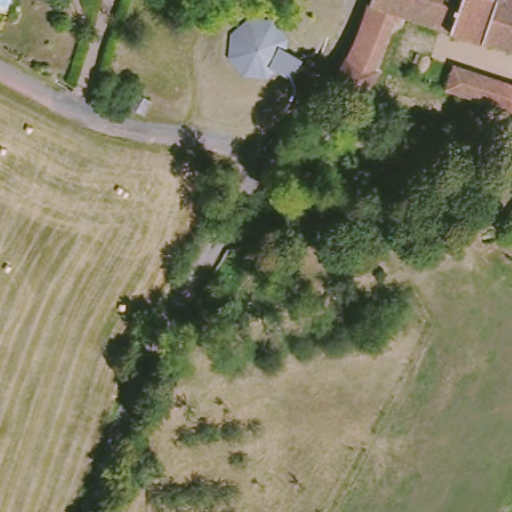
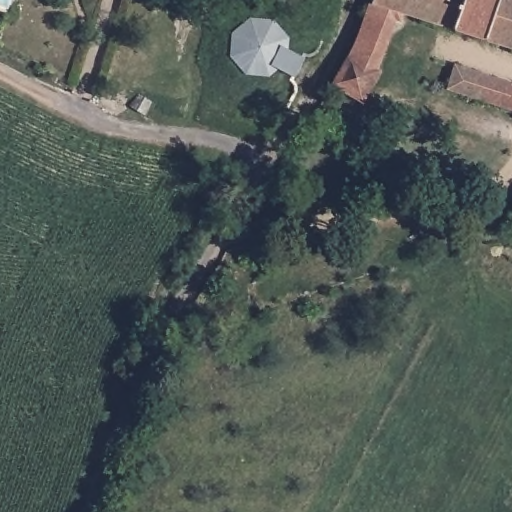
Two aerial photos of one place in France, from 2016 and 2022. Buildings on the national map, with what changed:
unchanged [(374,2),(375,0),(512,0),(512,48),(399,11),(374,2)]
unchanged [(368,1),(374,2),(399,11),(369,101),(338,86),(368,1)]
unchanged [(512,83),(512,108),(450,87),(458,66),(512,83)]
unchanged [(148,102),(142,115),(127,107),(133,94),(148,102)]

